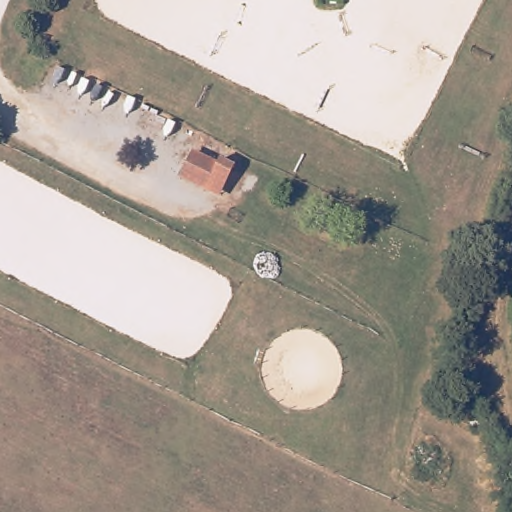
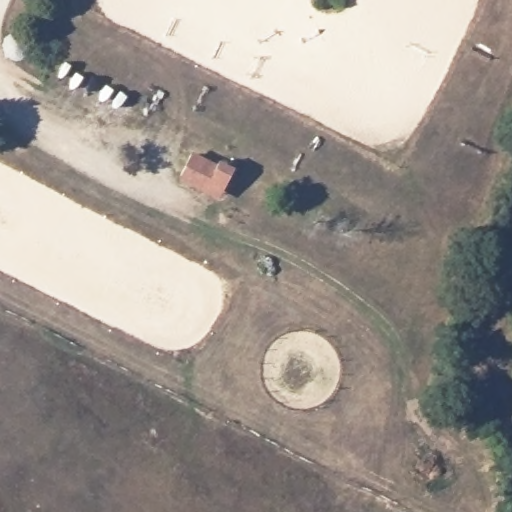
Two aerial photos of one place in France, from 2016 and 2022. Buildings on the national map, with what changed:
unchanged [(239,174),(225,198),(184,175),(196,147),(239,174)]

